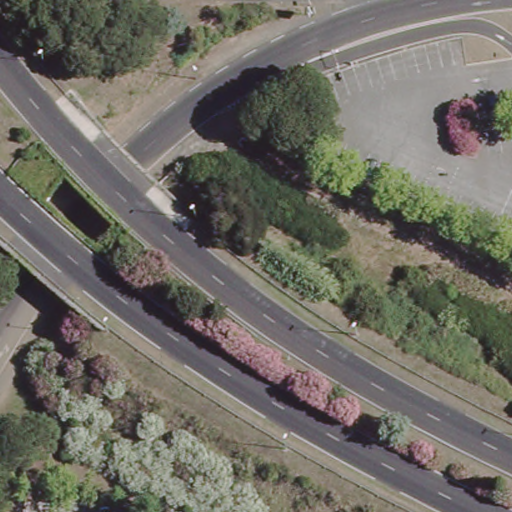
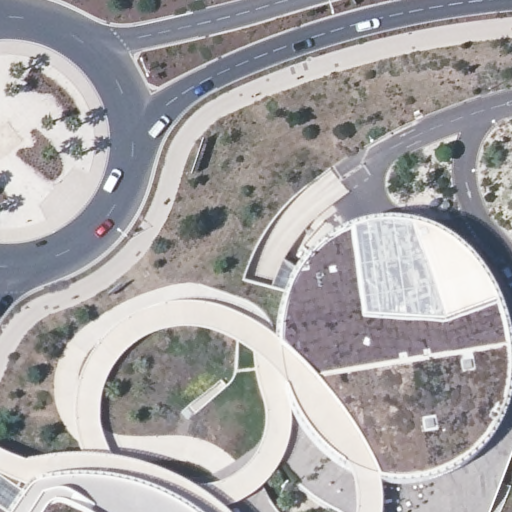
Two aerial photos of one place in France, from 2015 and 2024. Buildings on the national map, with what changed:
new [(361,219),(381,216),(404,219),(428,227),(444,237),(460,252),(477,271),(491,295),(505,330),(509,356),(509,381),(507,403),(501,423),(489,441),(476,457),(461,468),(447,474),(429,480),(412,484),(393,484),(377,481),(359,475),(342,466),(319,450),(299,426),(290,409),(284,392),(278,365),(276,342),(276,320),(281,294),(291,270),(304,252),(319,237),(343,225),(361,219)]
new [(15,480),(23,455),(51,450),(70,450),(84,450),(105,453),(131,460),(158,470),(176,479),(198,494),(219,510),(221,512),(0,512),(0,502),(6,493),(15,480)]

